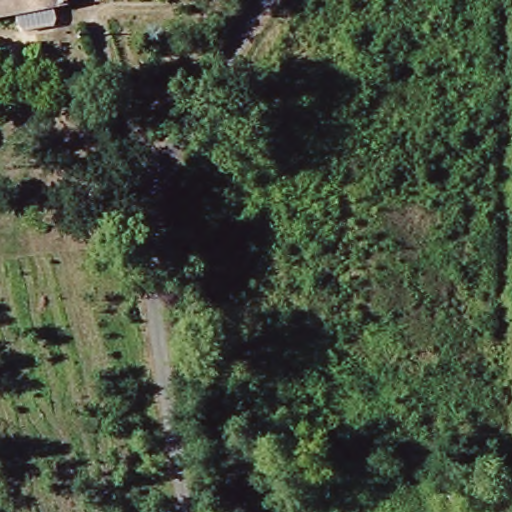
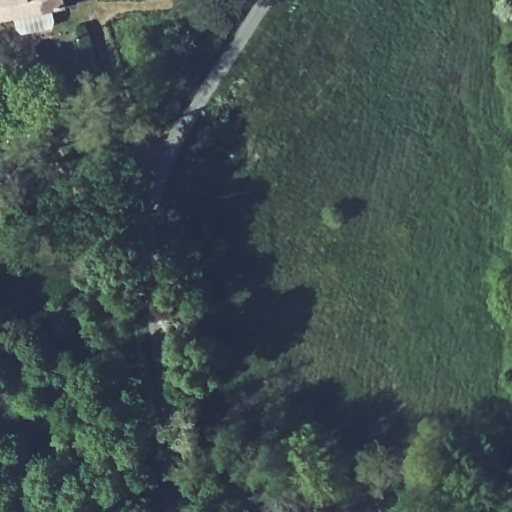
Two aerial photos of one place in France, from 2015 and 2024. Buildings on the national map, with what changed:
unchanged [(37,0),(58,0),(61,11),(39,15),(0,22),(0,0),(37,0)]

